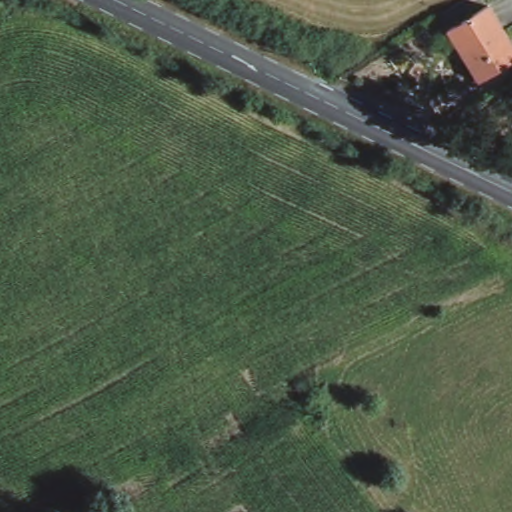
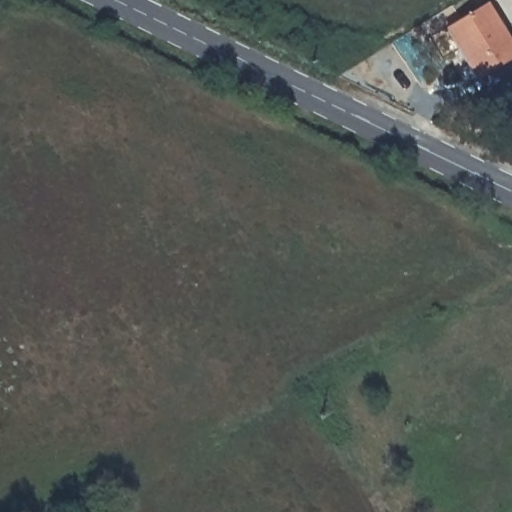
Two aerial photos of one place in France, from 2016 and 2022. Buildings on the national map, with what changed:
unchanged [(485,9),(512,51),(512,57),(476,81),(447,33),(485,9)]

